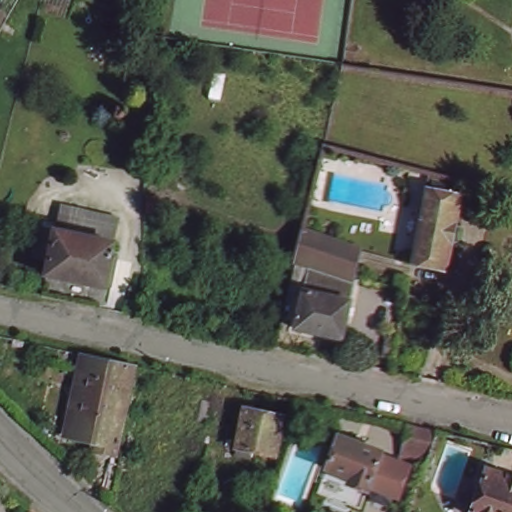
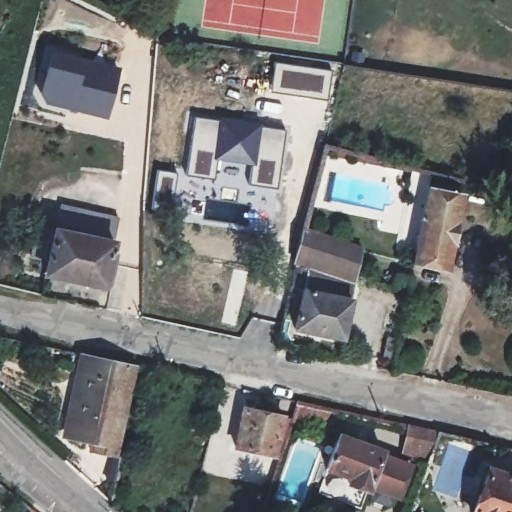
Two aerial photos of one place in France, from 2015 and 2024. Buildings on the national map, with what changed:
new [(47,47),(122,67),(110,121),(43,104),(40,91),(47,47)]
new [(270,92),(275,63),(330,71),(326,100),(270,92)]
new [(281,131),(272,188),(245,183),(248,161),(213,156),(208,178),(182,174),(190,117),(281,131)]
new [(157,170),(175,173),(170,208),(154,206),(157,170)]
unchanged [(427,188),(462,195),(447,270),(412,263),(427,188)]
unchanged [(65,208),(65,205),(124,217),(122,220),(118,242),(60,230),(65,208)]
unchanged [(365,245),(359,270),(301,250),(300,250),(305,232),(307,225),(365,245)]
unchanged [(36,257),(42,227),(60,230),(118,242),(109,286),(50,274),(53,261),(36,257)]
unchanged [(359,270),(360,271),(355,294),(347,333),(299,323),(307,284),(294,280),(301,250),(359,270)]
unchanged [(384,357),(387,340),(397,342),(394,359),(384,357)]
unchanged [(135,366),(115,456),(90,449),(92,439),(64,433),(82,354),(135,366)]
unchanged [(317,406),(312,425),(286,420),(292,401),(317,406)]
unchanged [(274,456),(269,455),(230,447),(237,408),(277,416),(275,424),(285,426),(274,456)]
unchanged [(402,455),(404,445),(409,425),(437,431),(430,452),(427,461),(402,455)]
unchanged [(392,495),(390,501),(385,503),(375,499),(372,494),(374,488),(368,486),(367,491),(347,484),(349,478),(325,469),(337,435),(381,450),(380,453),(409,464),(397,497),(392,495)]
unchanged [(472,512),(487,469),(512,477),(512,512),(472,512)]

